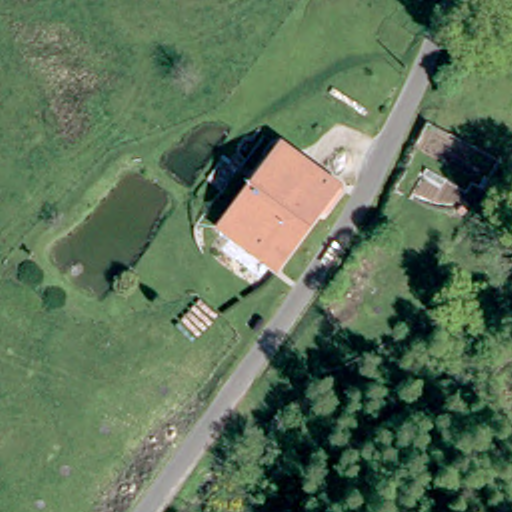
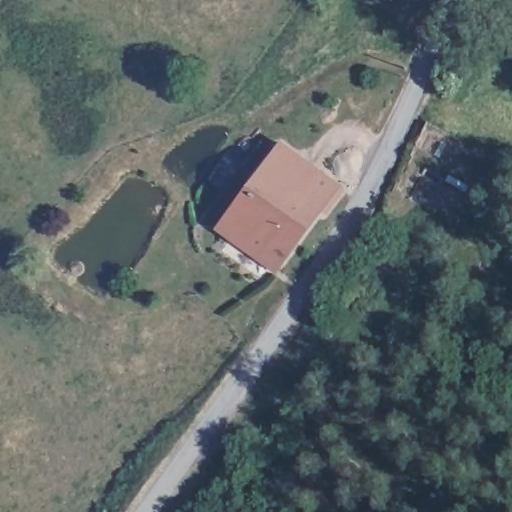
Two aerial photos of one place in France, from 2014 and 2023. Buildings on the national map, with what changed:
unchanged [(280,137),(341,189),(325,207),(322,204),(276,263),(220,220),(280,137)]

